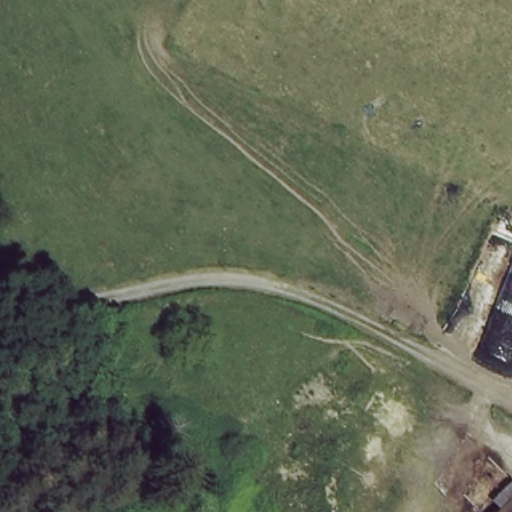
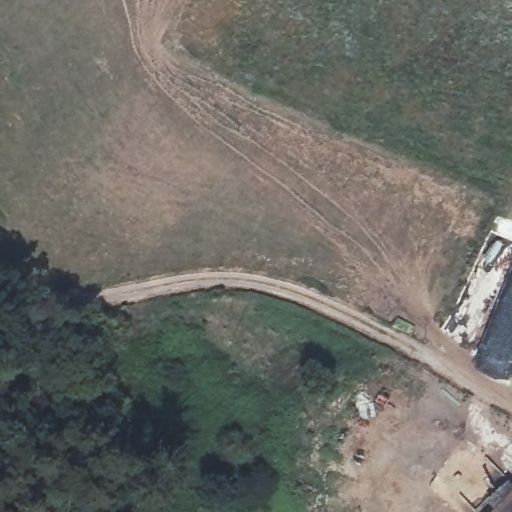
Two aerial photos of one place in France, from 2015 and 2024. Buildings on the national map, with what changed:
unchanged [(512,511),(512,512),(511,512),(512,511)]

